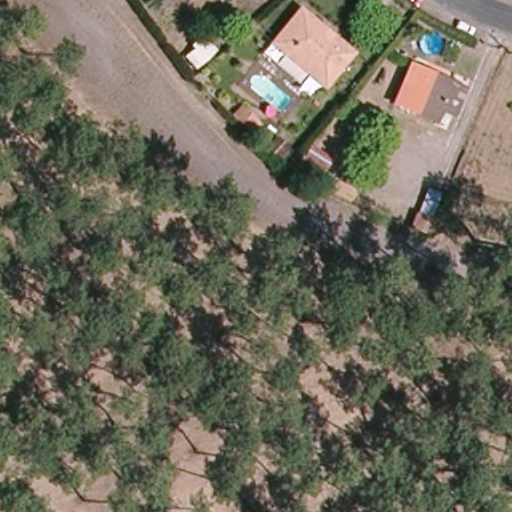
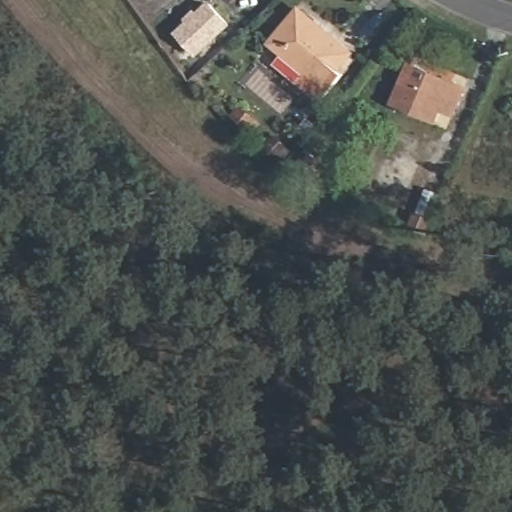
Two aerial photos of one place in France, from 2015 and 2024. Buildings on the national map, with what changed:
new [(196,57),(175,34),(211,1),(232,24),(196,57)]
unchanged [(271,43),(300,10),(352,52),(324,87),(271,43)]
unchanged [(465,88),(453,115),(440,110),(435,121),(394,104),(410,65),(465,88)]
unchanged [(231,116),(240,106),(260,124),(251,134),(231,116)]
unchanged [(292,151),(282,162),(266,149),(275,137),(292,151)]
unchanged [(330,159),(323,170),(325,171),(320,180),(297,165),(302,157),(304,157),(311,146),(330,159)]
unchanged [(427,190),(440,194),(433,212),(420,208),(427,190)]
unchanged [(433,220),(428,234),(410,227),(415,212),(433,220)]

